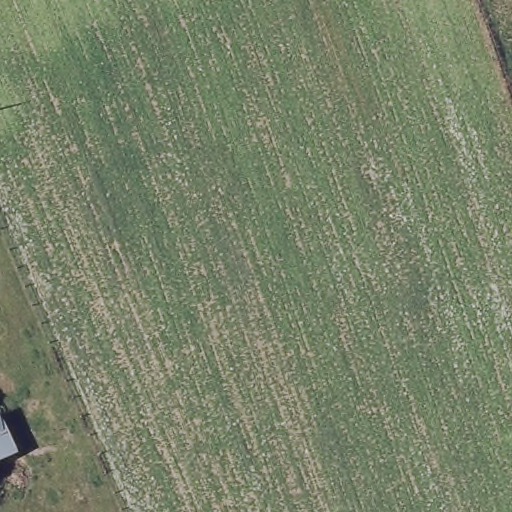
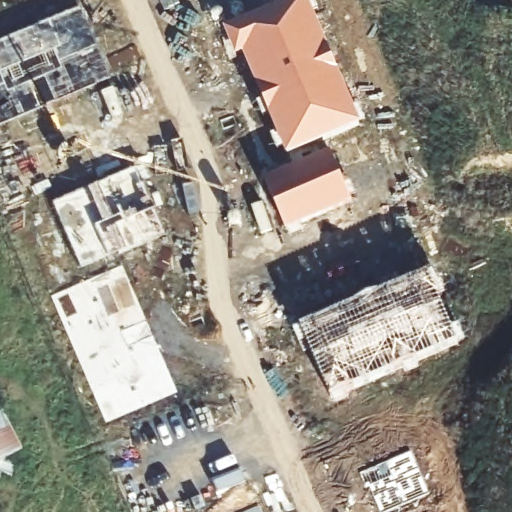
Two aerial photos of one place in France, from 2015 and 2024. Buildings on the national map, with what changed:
new [(362,127),(288,157),(245,56),(239,61),(226,31),(299,0),(309,0),(362,127)]
new [(90,30),(110,81),(0,132),(0,40),(87,3),(98,26),(90,30)]
new [(283,235),(261,180),(332,152),(351,204),(283,235)]
new [(165,238),(80,277),(50,207),(135,168),(165,238)]
new [(178,402),(158,413),(153,406),(103,430),(50,301),(123,270),(178,402)]
new [(330,405),(298,331),(435,272),(445,295),(438,297),(455,347),(330,405)]
unchanged [(0,437),(0,408),(9,432),(0,437)]
unchanged [(0,458),(0,441),(6,456),(0,458)]
new [(374,512),(372,505),(365,506),(355,479),(410,453),(427,499),(397,512),(374,512)]

